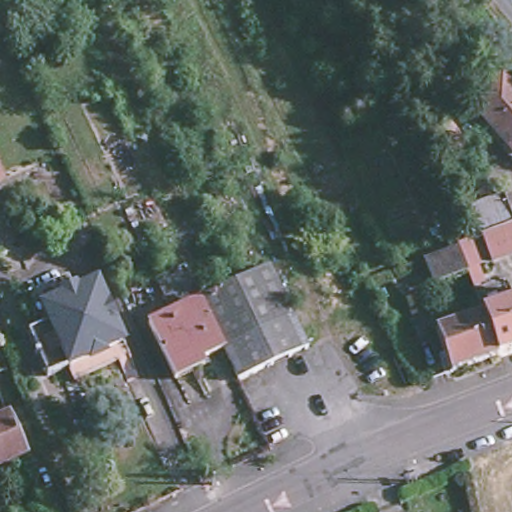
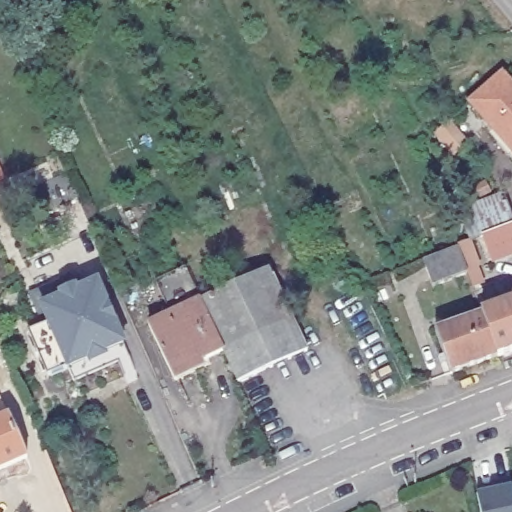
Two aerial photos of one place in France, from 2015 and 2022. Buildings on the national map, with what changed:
unchanged [(512,87),(512,151),(471,103),(503,76),(512,87)]
unchanged [(5,183),(0,185),(0,173),(5,183)]
unchanged [(487,232),(473,238),(462,210),(508,191),(512,203),(512,250),(497,256),(487,232)]
unchanged [(483,266),(478,268),(470,271),(435,283),(426,258),(461,246),(459,242),(473,238),(483,266)]
unchanged [(169,314),(153,281),(184,268),(199,301),(169,314)]
unchanged [(248,377),(236,382),(222,350),(200,360),(203,367),(173,380),(147,324),(169,314),(199,301),(201,300),(211,295),(268,269),(290,317),(305,350),(248,377)]
unchanged [(42,328),(52,323),(46,311),(39,314),(29,294),(63,279),(70,295),(74,294),(100,353),(71,366),(61,371),(50,375),(31,333),(42,328)]
unchanged [(99,282),(127,341),(100,353),(74,294),(99,282)]
unchanged [(485,312),(483,309),(512,299),(512,350),(500,354),(485,312)]
unchanged [(453,371),(438,329),(485,312),(500,354),(453,371)]
unchanged [(6,417),(24,457),(0,468),(0,419),(6,417)]
new [(483,495),(500,492),(498,481),(512,478),(512,512),(486,512),(482,493),(483,493),(483,495)]

